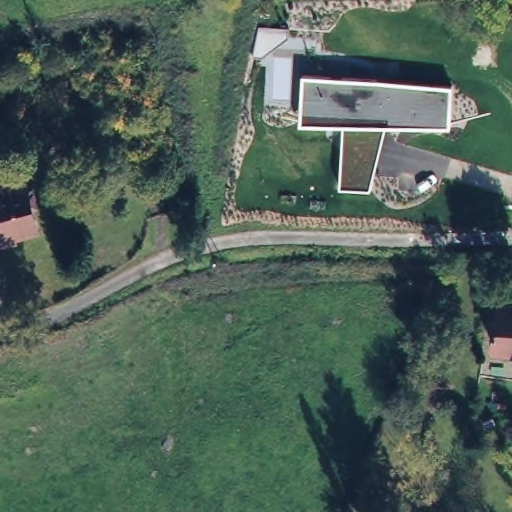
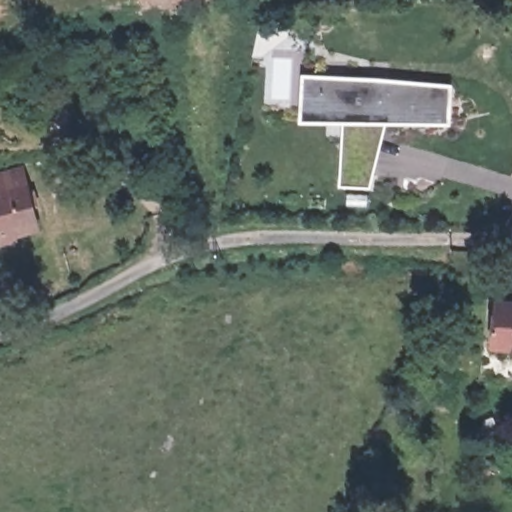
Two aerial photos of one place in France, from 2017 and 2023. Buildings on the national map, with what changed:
unchanged [(301,123),(302,76),(450,87),(450,125),(386,124),(370,188),(340,187),(342,124),(301,123)]
unchanged [(17,161),(32,221),(0,229),(0,165),(17,161)]
unchanged [(507,299),(512,299),(512,342),(504,342),(507,299)]

